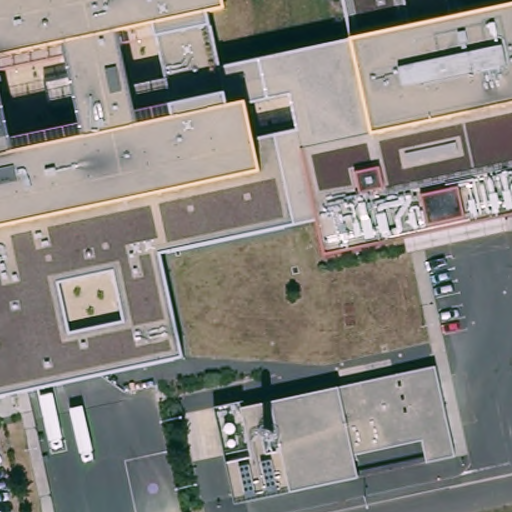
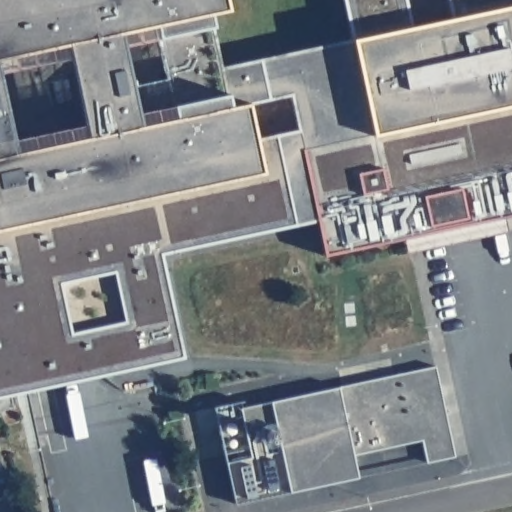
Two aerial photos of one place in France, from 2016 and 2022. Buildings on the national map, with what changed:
unchanged [(225,7),(207,9),(209,23),(211,24),(222,66),(237,147),(256,144),(261,169),(0,226),(0,80),(17,149),(87,134),(67,38),(0,52),(0,0),(224,0),(225,7)]
unchanged [(410,24),(352,36),(345,0),(406,0),(410,24)]
unchanged [(449,0),(512,0),(512,1),(452,14),(449,0)]
unchanged [(452,14),(512,1),(512,100),(373,133),(352,36),(410,24),(452,14)]
unchanged [(261,169),(256,144),(237,147),(222,66),(352,36),(373,133),(512,100),(512,211),(327,249),(321,218),(161,249),(182,353),(46,387),(0,395),(0,226),(261,169)]
unchanged [(457,456),(236,502),(227,461),(252,457),(243,405),(274,399),(343,385),(437,364),(457,456)]

